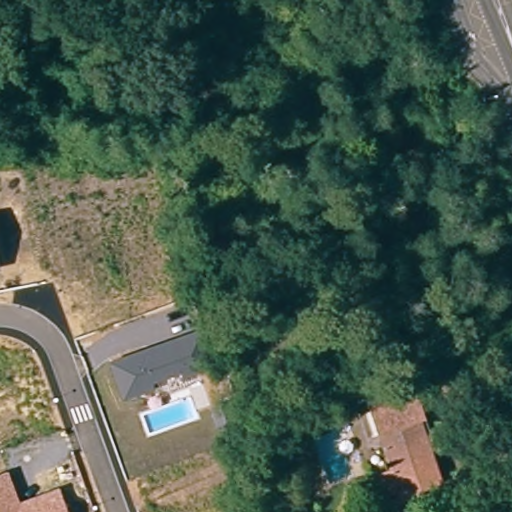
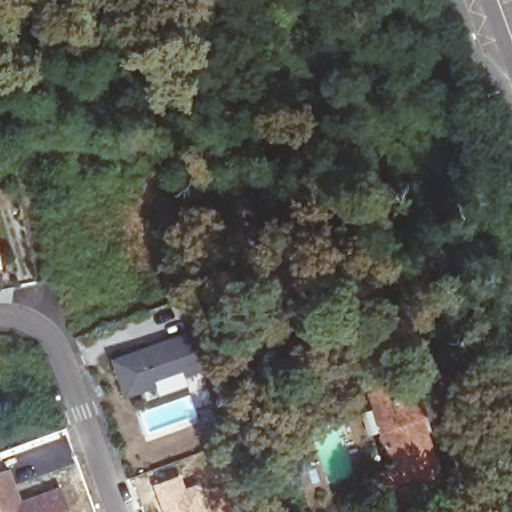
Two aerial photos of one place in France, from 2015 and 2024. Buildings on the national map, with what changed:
unchanged [(0,262),(1,266),(0,267),(0,262)]
unchanged [(109,358),(201,327),(215,365),(184,377),(180,370),(152,381),(155,386),(124,397),(109,358)]
unchanged [(420,482),(421,491),(416,493),(415,488),(373,503),(370,498),(376,497),(367,471),(392,462),(370,402),(390,395),(389,393),(396,390),(392,377),(396,375),(397,381),(412,376),(423,410),(420,411),(442,475),(420,482)]
unchanged [(20,500),(60,485),(69,512),(0,512),(0,472),(9,469),(20,500)]
new [(180,474),(185,486),(209,478),(219,512),(161,512),(151,485),(180,474)]

